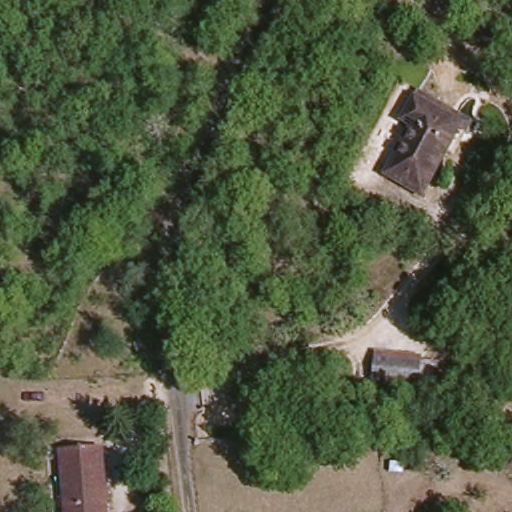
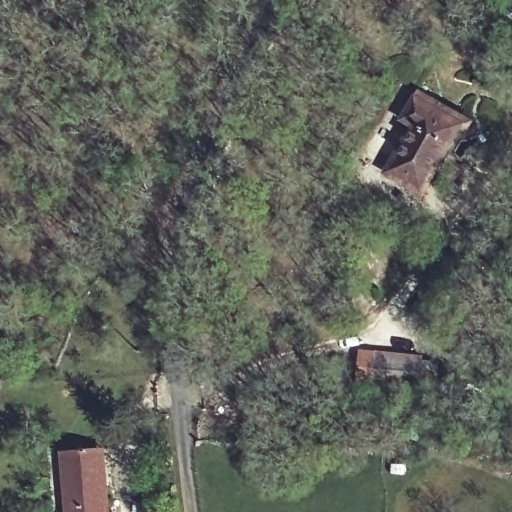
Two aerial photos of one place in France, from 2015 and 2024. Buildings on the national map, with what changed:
unchanged [(383,175),(408,125),(401,120),(411,99),(459,124),(423,196),(383,175)]
unchanged [(422,391),(374,386),(379,350),(426,356),(426,359),(440,361),(437,389),(422,387),(422,391)]
unchanged [(103,459),(107,512),(64,512),(59,463),(103,459)]

